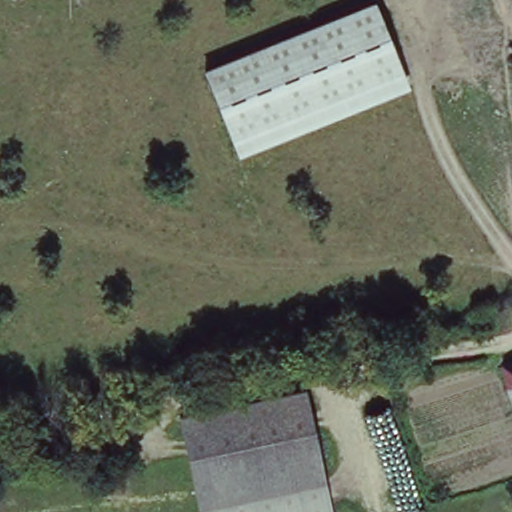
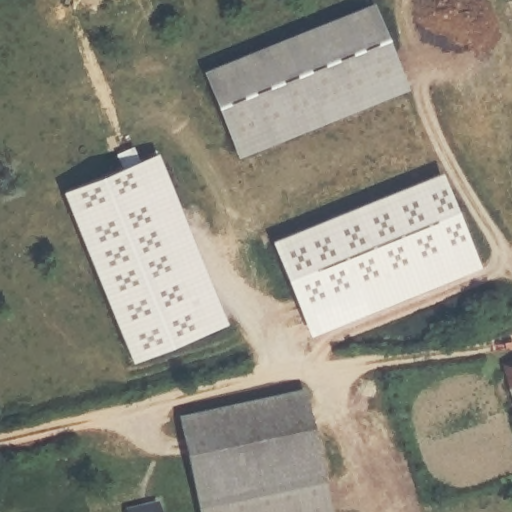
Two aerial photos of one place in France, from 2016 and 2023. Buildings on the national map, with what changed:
unchanged [(239,156),(204,71),(374,3),(408,86),(239,156)]
new [(140,160),(211,329),(133,359),(62,191),(140,160)]
new [(441,172),(472,249),(302,315),(275,242),(441,172)]
unchanged [(512,362),(512,396),(499,367),(512,362)]
unchanged [(309,385),(331,512),(197,512),(178,413),(309,385)]

